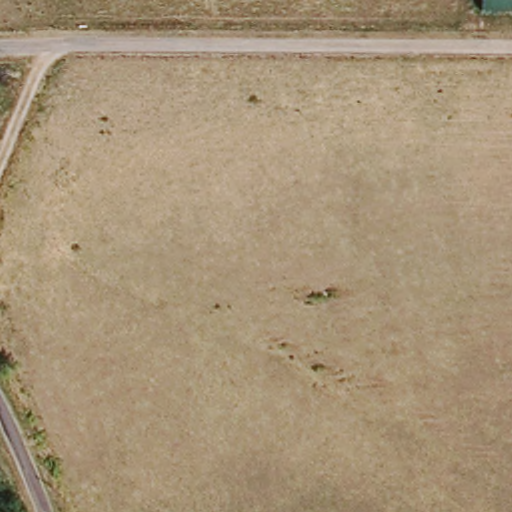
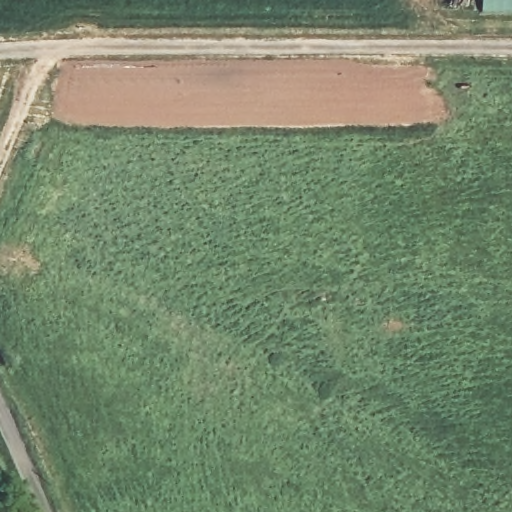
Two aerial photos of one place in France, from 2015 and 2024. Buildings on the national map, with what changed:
unchanged [(484,0),(512,0),(512,15),(484,17),(484,0)]

